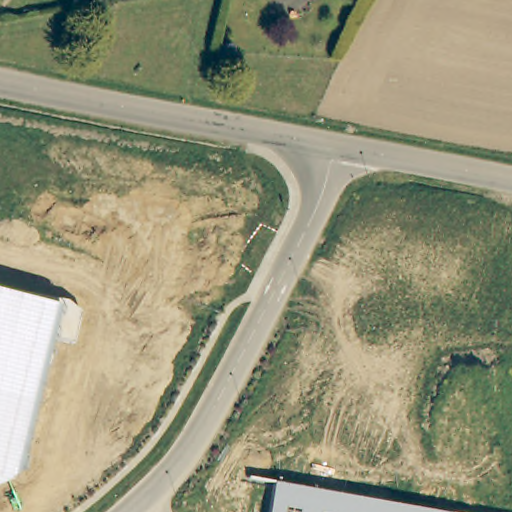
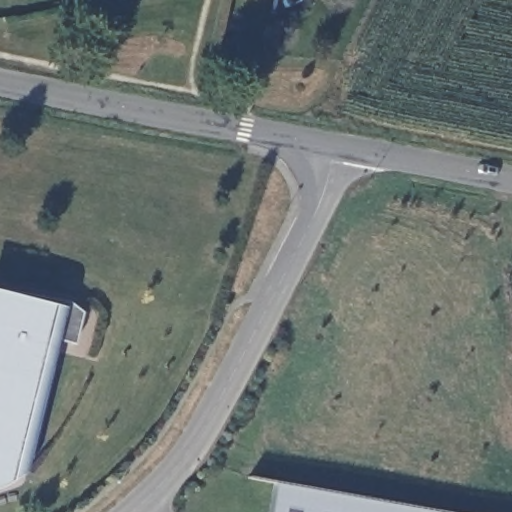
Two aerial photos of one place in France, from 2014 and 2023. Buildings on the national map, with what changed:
unchanged [(17,473),(2,485),(0,486),(0,291),(58,305),(65,301),(80,312),(74,345),(50,340),(17,473)]
unchanged [(441,512),(271,512),(275,483),(441,512)]

